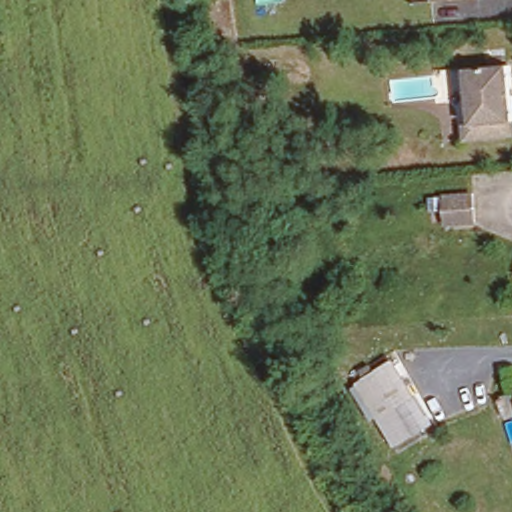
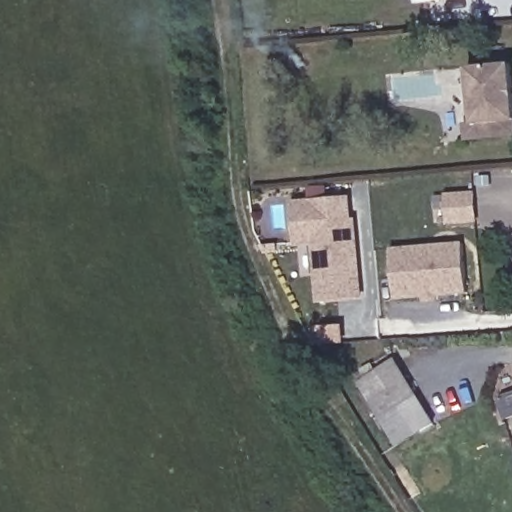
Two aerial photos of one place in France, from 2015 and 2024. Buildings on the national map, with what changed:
unchanged [(472,122),(465,67),(510,63),(512,87),(512,135),(464,140),(463,122),(472,122)]
unchanged [(446,195),(475,194),(477,221),(448,222),(446,195)]
new [(317,302),(312,245),(294,247),(290,200),(350,196),(353,219),(356,218),(362,298),(317,302)]
new [(462,242),(466,293),(394,300),(390,249),(462,242)]
new [(434,425),(396,447),(378,417),(358,380),(374,372),(395,358),(434,425)]
demolished [(358,380),(374,372),(396,408),(378,417),(358,380)]

